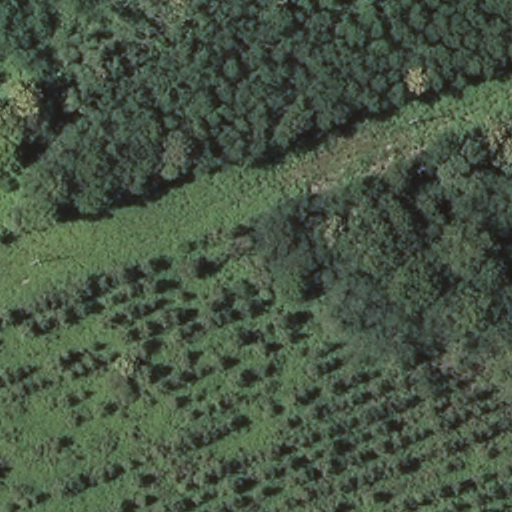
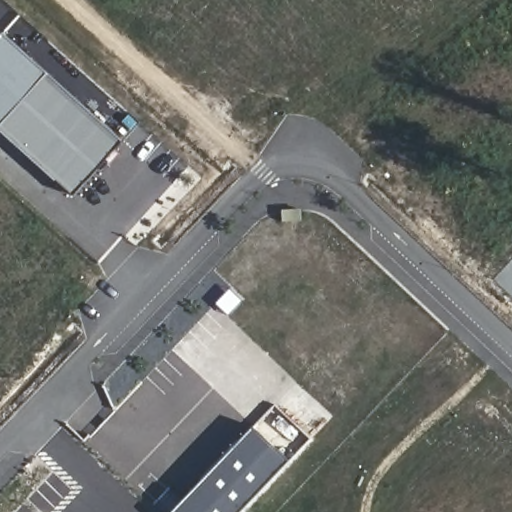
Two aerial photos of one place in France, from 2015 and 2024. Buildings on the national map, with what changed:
new [(0,129),(0,37),(4,32),(51,72),(1,127),(0,129)]
new [(51,72),(127,140),(78,195),(1,127),(51,72)]
new [(303,469),(263,512),(167,512),(165,510),(251,419),(303,469)]

